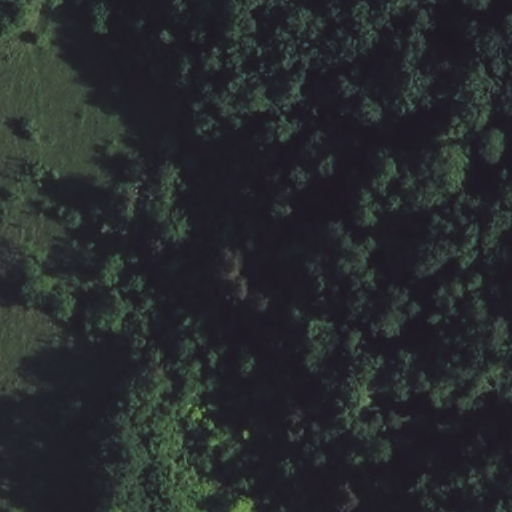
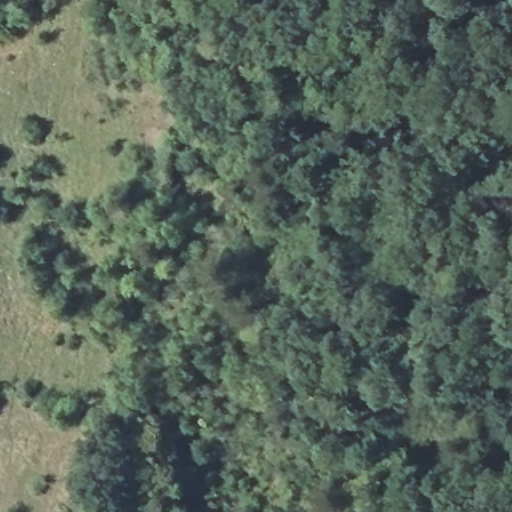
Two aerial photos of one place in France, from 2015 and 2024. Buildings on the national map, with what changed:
[]

